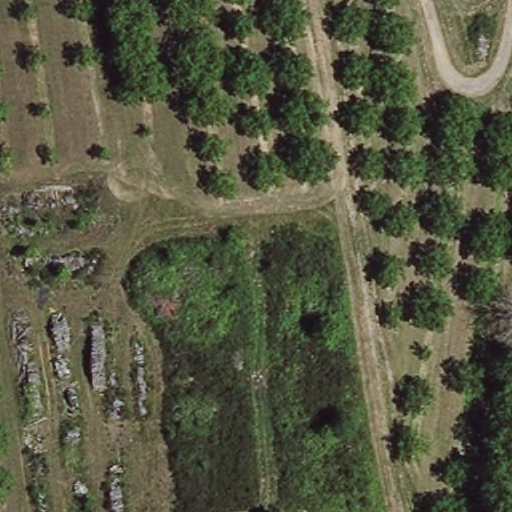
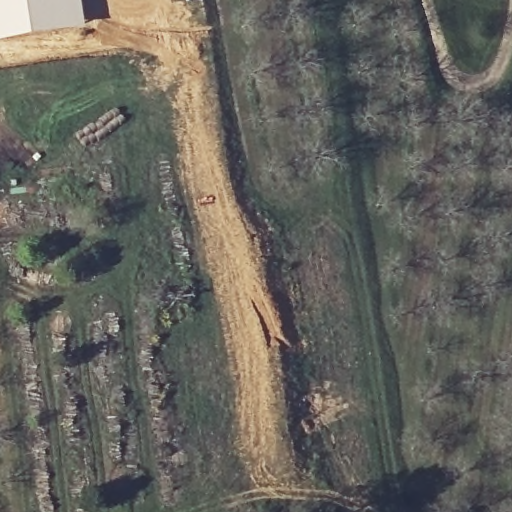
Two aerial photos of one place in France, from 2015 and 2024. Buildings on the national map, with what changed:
new [(85,26),(4,41),(0,42),(0,0),(81,0),(85,26)]

